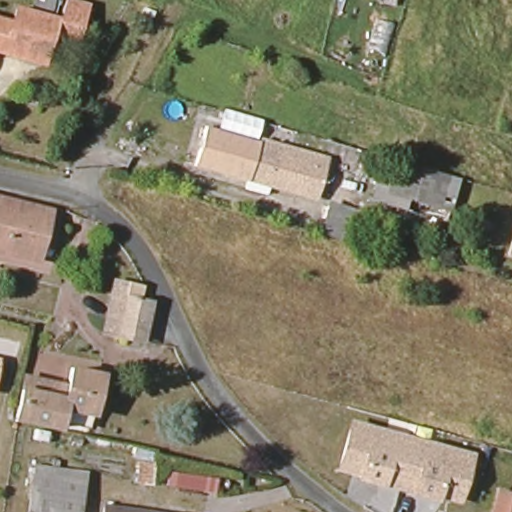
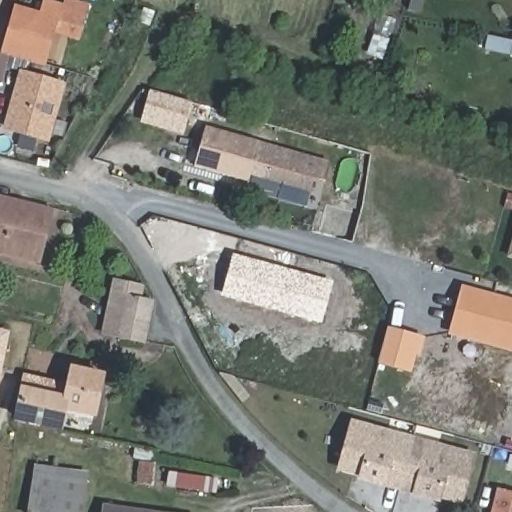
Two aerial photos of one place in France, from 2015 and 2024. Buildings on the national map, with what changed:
unchanged [(7,53),(15,23),(19,7),(35,12),(38,0),(58,0),(53,17),(64,20),(70,0),(91,6),(81,41),(56,34),(47,66),(7,53)]
unchanged [(157,31),(147,27),(152,14),(162,18),(157,31)]
new [(22,73),(62,85),(46,139),(6,127),(22,73)]
new [(140,123),(150,91),(194,103),(183,136),(140,123)]
unchanged [(250,189),(252,182),(198,166),(209,127),(277,146),(276,147),(321,161),(331,163),(320,200),(311,197),(273,186),(271,195),(250,189)]
unchanged [(414,199),(412,208),(380,200),(382,190),(389,168),(401,171),(404,161),(467,180),(458,212),(414,199)]
unchanged [(30,258),(0,251),(0,197),(54,210),(41,261),(30,258)]
unchanged [(318,239),(326,212),(327,206),(348,212),(360,216),(351,247),(318,239)]
new [(221,297),(232,254),(333,282),(321,324),(221,297)]
unchanged [(121,335),(107,332),(117,282),(132,285),(144,287),(141,300),(155,302),(147,341),(121,335)]
new [(462,285),(512,299),(512,353),(448,335),(462,285)]
new [(388,327),(425,337),(421,356),(416,355),(411,372),(377,363),(388,327)]
new [(0,366),(0,333),(6,334),(0,366)]
demolished [(0,359),(2,359),(0,367),(0,359)]
unchanged [(20,423),(26,393),(29,378),(72,388),(76,373),(106,380),(97,418),(67,412),(63,432),(20,423)]
unchanged [(466,495),(445,490),(443,497),(403,486),(363,476),(366,468),(345,462),(356,423),(477,456),(466,495)]
unchanged [(161,489),(146,487),(149,465),(164,467),(161,489)]
unchanged [(35,469),(85,477),(84,483),(80,512),(29,512),(34,476),(35,469)]
unchanged [(512,499),(512,512),(493,512),(498,495),(512,499)]
unchanged [(127,512),(113,512),(113,510),(127,512)]

